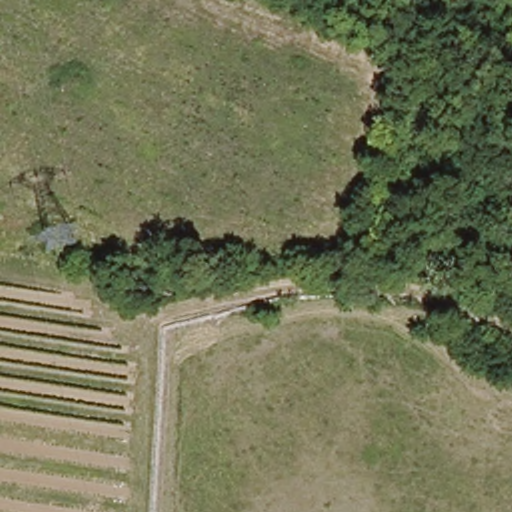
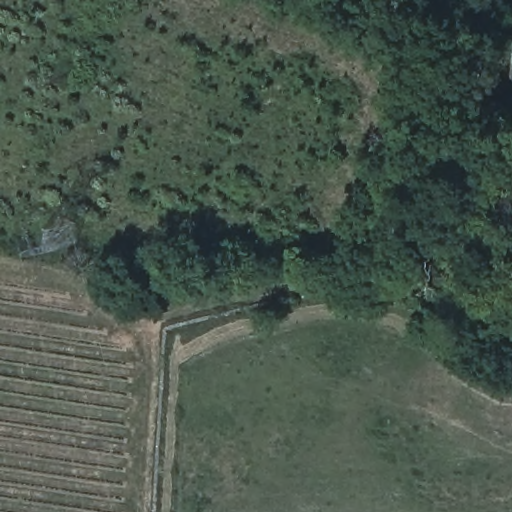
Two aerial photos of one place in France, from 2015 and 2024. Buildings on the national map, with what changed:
[]

